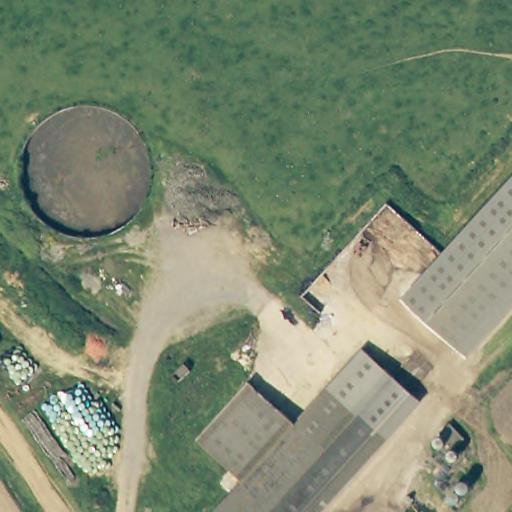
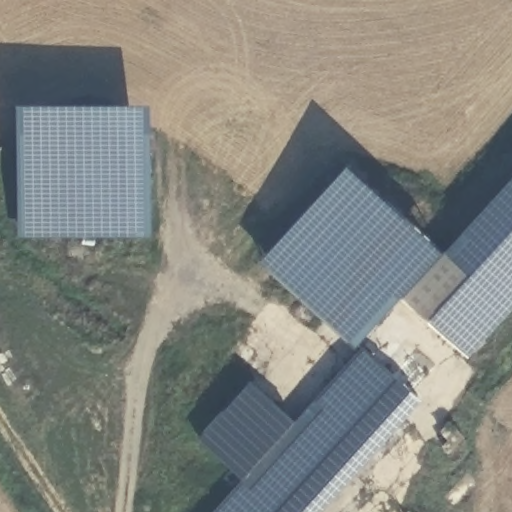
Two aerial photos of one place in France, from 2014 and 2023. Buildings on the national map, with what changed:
new [(153,104),(152,236),(20,237),(19,103),(153,104)]
new [(412,304),(405,295),(357,347),(262,261),(350,164),(445,250),(445,252),(512,178),(512,192),(412,304)]
unchanged [(512,192),(512,305),(468,354),(412,304),(512,192)]
unchanged [(246,479),(297,422),(332,384),(365,348),(413,391),(303,512),(216,512),(246,479)]
unchanged [(201,437),(253,382),(297,422),(246,479),(201,437)]
unchanged [(461,438),(445,452),(437,444),(445,437),(438,431),(445,423),(461,438)]

